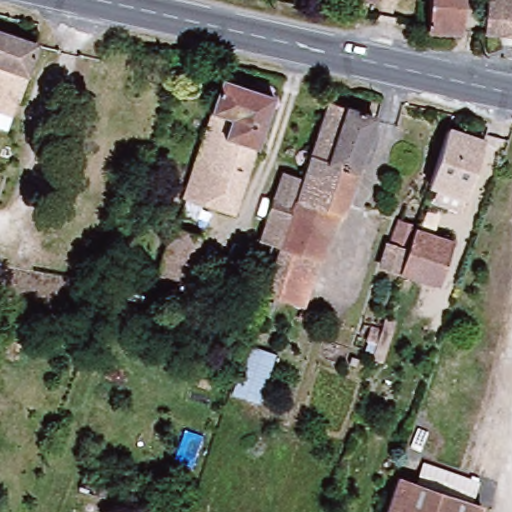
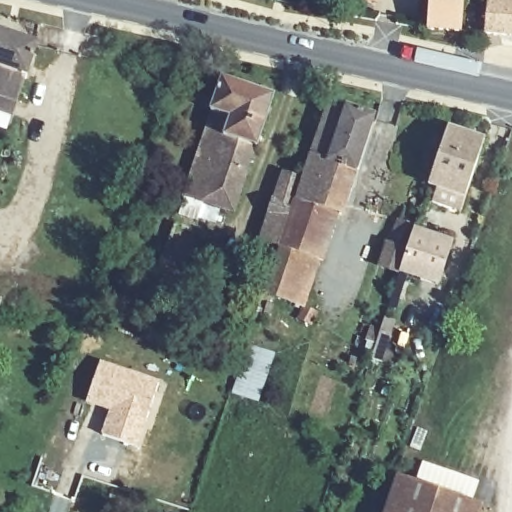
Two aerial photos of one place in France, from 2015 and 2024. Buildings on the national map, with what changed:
unchanged [(460,35),(428,34),(431,0),(462,0),(460,35)]
unchanged [(487,0),(512,0),(512,34),(484,32),(487,0)]
unchanged [(35,48),(16,102),(10,117),(0,113),(0,35),(35,48)]
unchanged [(271,98),(255,146),(252,147),(230,211),(181,195),(208,112),(207,111),(218,80),(271,98)]
unchanged [(372,117),(339,215),(332,214),(316,260),(276,245),(298,179),(324,101),(372,117)]
unchanged [(487,141),(469,196),(430,182),(448,129),(487,141)]
unchanged [(256,240),(279,172),(298,179),(276,245),(256,240)]
unchanged [(434,284),(395,271),(377,266),(384,244),(389,243),(395,221),(410,226),(409,229),(448,241),(434,284)]
unchanged [(197,237),(182,280),(166,275),(162,286),(151,282),(166,239),(171,228),(197,237)]
unchanged [(316,260),(300,308),(260,295),(276,245),(316,260)]
unchanged [(378,340),(385,318),(395,320),(385,350),(376,347),(358,342),(361,334),(378,340)]
unchanged [(245,343),(271,352),(255,402),(230,392),(245,343)]
new [(99,360),(159,380),(137,446),(99,433),(107,411),(84,401),(99,360)]
unchanged [(422,460),(476,480),(468,504),(418,488),(413,486),(422,460)]
unchanged [(418,488),(411,512),(383,512),(393,480),(413,486),(418,488)]
unchanged [(468,504),(477,506),(475,512),(411,512),(418,488),(468,504)]

